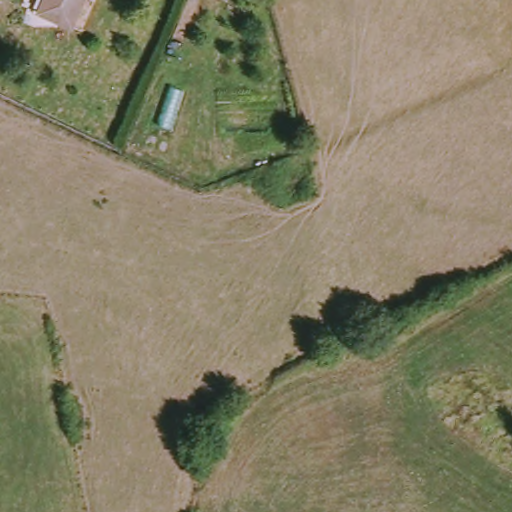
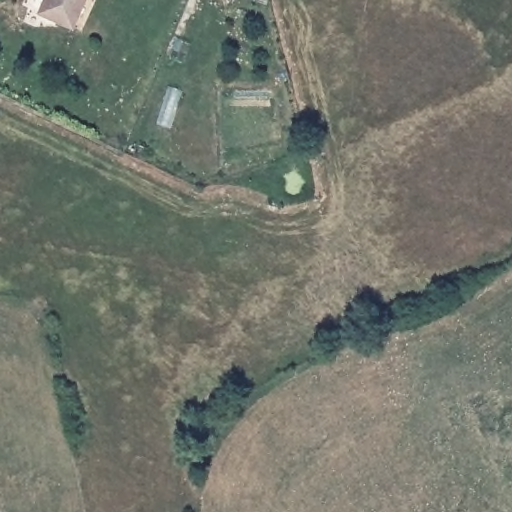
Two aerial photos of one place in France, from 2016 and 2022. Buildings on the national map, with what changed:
unchanged [(44,14),(51,0),(89,0),(77,29),(44,14)]

